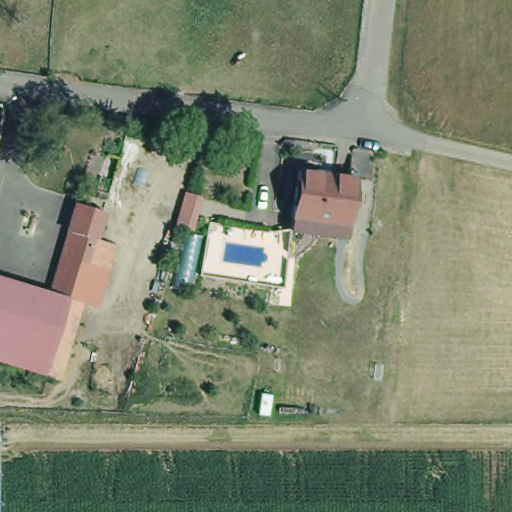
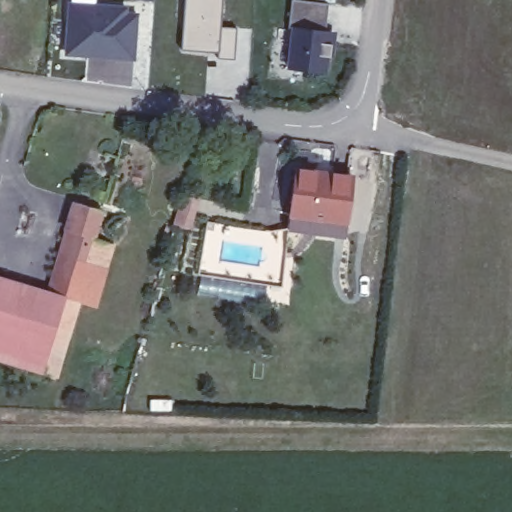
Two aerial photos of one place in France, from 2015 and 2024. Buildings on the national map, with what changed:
new [(222,0),(220,25),(238,27),(235,59),(216,58),(217,53),(180,49),(184,0),(222,0)]
new [(325,30),(335,31),(332,59),(328,59),(327,73),(287,69),(292,29),(288,29),(292,0),(304,0),(327,3),(325,30)]
new [(63,56),(67,1),(129,6),(129,13),(138,14),(135,60),(63,56)]
unchanged [(292,226),(295,209),(300,166),(357,173),(351,216),(348,234),(292,226)]
unchanged [(63,289),(82,226),(77,224),(87,195),(112,204),(103,232),(107,233),(102,249),(88,295),(82,294),(63,289)]
unchanged [(102,249),(107,233),(122,238),(103,300),(88,295),(102,249)]
unchanged [(0,351),(0,269),(63,289),(82,294),(58,369),(0,351)]

